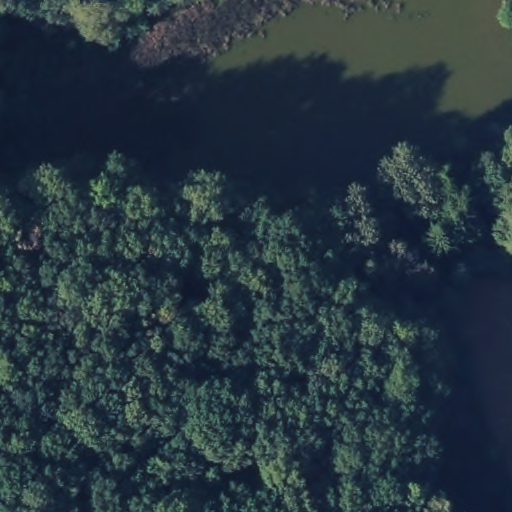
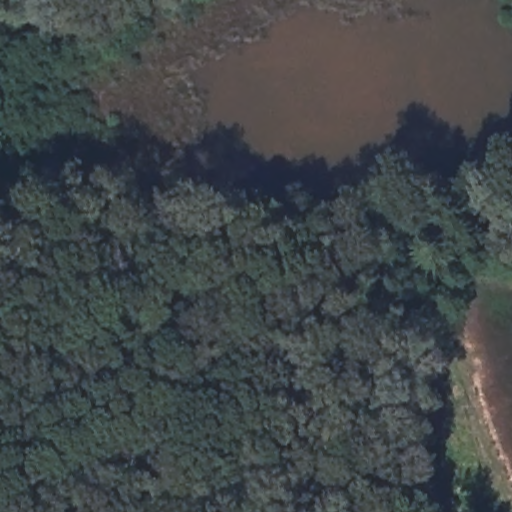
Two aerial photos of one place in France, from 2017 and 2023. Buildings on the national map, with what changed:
unchanged [(177,198),(178,214),(145,216),(144,199),(177,198)]

